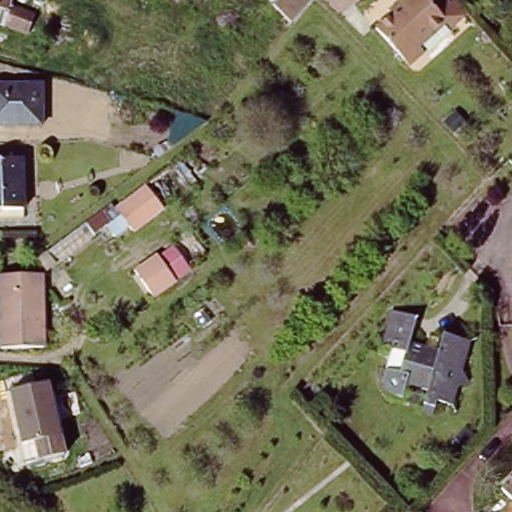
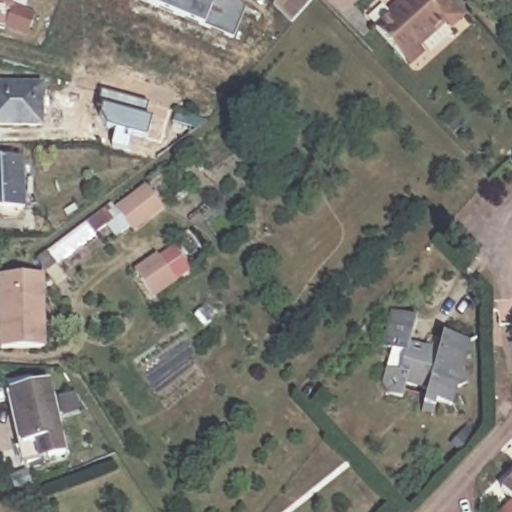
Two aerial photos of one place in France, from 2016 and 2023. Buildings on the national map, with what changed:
unchanged [(28,34),(5,26),(5,23),(0,21),(0,0),(12,0),(10,5),(36,16),(28,34)]
new [(203,25),(143,0),(237,0),(246,8),(233,37),(203,25)]
unchanged [(282,0),(305,0),(285,23),(272,11),(282,0)]
unchanged [(405,62),(377,31),(403,7),(399,3),(402,0),(407,0),(437,32),(420,48),(425,54),(410,67),(405,62)]
unchanged [(453,28),(447,23),(437,32),(407,0),(454,0),(467,15),(453,28)]
unchanged [(42,94),(42,130),(0,130),(0,89),(42,90),(42,94)]
unchanged [(23,209),(24,220),(0,221),(0,159),(22,158),(23,209)]
unchanged [(65,257),(57,245),(85,224),(112,203),(115,209),(145,186),(161,207),(131,229),(128,227),(115,237),(105,225),(92,234),(94,236),(65,257)]
unchanged [(140,275),(162,258),(165,260),(178,250),(193,272),(180,282),(182,284),(160,300),(140,275)]
unchanged [(1,275),(44,274),(47,346),(5,348),(1,275)]
unchanged [(437,351),(442,333),(470,345),(455,409),(425,405),(428,393),(409,387),(405,398),(398,396),(384,391),(394,351),(382,347),(392,312),(417,319),(413,346),(425,349),(437,351)]
unchanged [(14,391),(50,384),(61,438),(25,445),(14,391)]
unchanged [(503,494),(512,486),(512,504),(503,494)]

